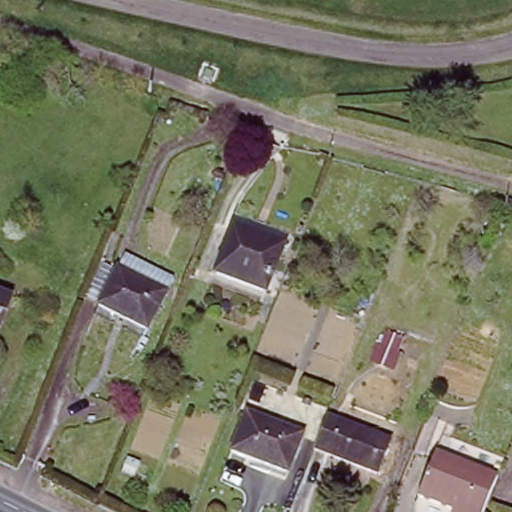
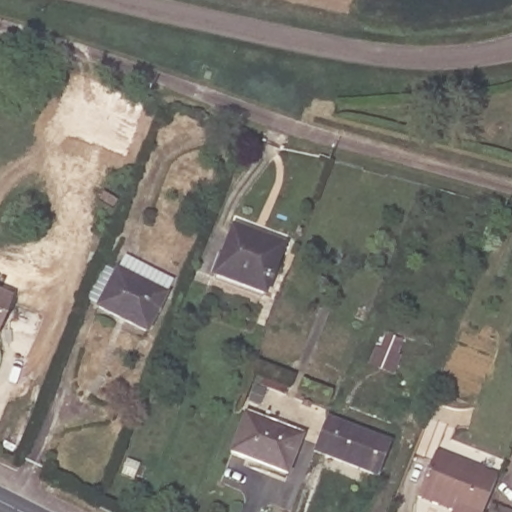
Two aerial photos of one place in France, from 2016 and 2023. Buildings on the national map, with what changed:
unchanged [(286,247),(269,294),(221,276),(238,230),(286,247)]
unchanged [(100,310),(115,270),(120,256),(166,274),(160,288),(147,327),(100,310)]
unchanged [(0,293),(15,299),(0,337),(0,293)]
unchanged [(377,341),(382,343),(386,331),(400,337),(395,349),(400,351),(395,366),(371,357),(377,341)]
unchanged [(305,432),(291,475),(236,455),(250,413),(305,432)]
unchanged [(393,440),(382,475),(313,450),(326,416),(393,440)]
unchanged [(455,512),(421,512),(420,496),(437,448),(501,470),(487,505),(485,512),(470,512),(457,507),(455,512)]

